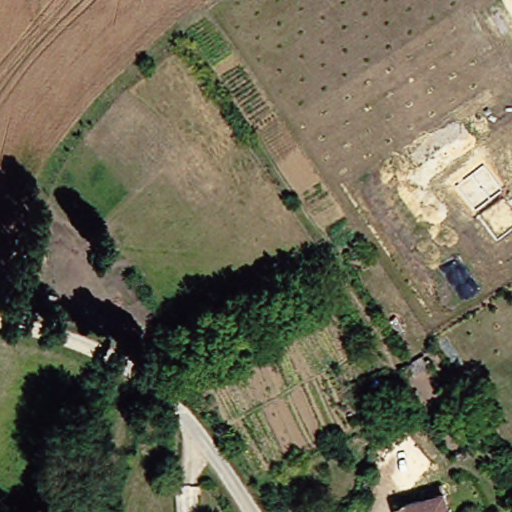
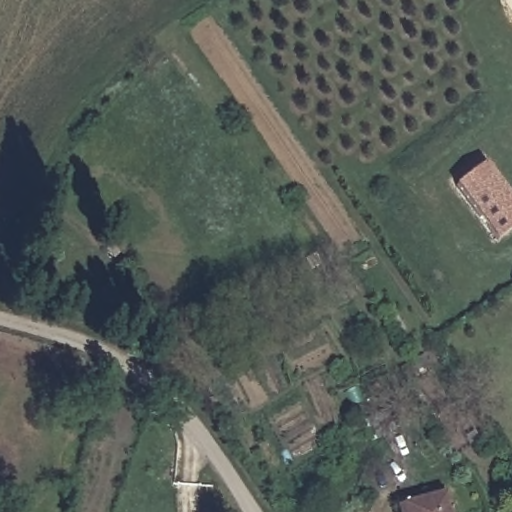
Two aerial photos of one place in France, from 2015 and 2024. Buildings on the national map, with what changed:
new [(509,202),(512,200),(512,227),(496,239),(456,186),(484,166),(509,202)]
unchanged [(404,512),(404,508),(416,505),(452,494),(456,512),(404,512)]

